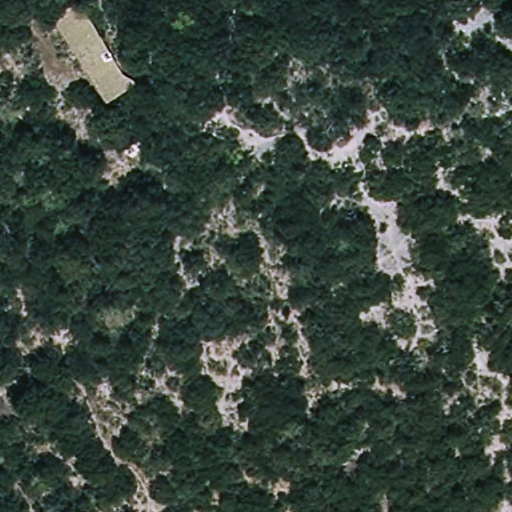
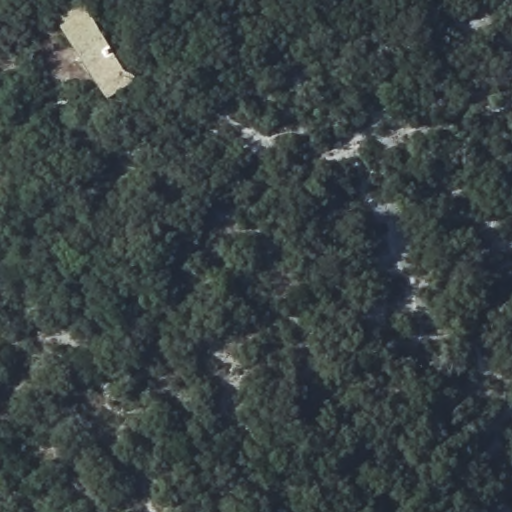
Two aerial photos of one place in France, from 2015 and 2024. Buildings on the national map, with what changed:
unchanged [(79,2),(124,73),(138,81),(100,101),(50,17),(79,2)]

